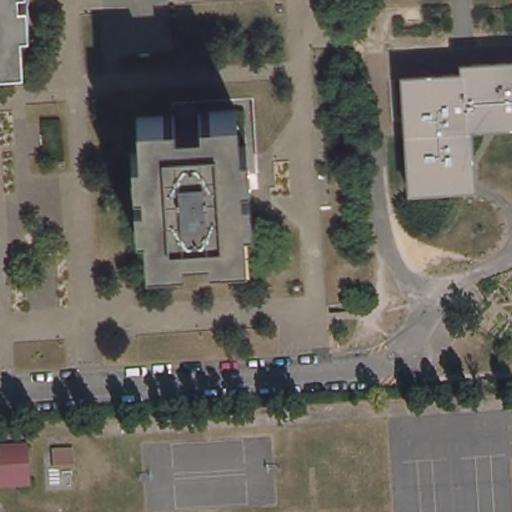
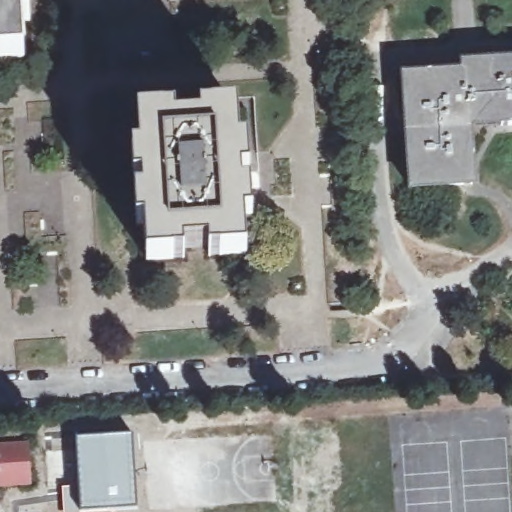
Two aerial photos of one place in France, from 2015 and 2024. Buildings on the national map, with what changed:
unchanged [(31,21),(30,21),(23,21),(25,57),(0,59),(0,0),(30,0),(31,21)]
unchanged [(404,78),(404,77),(466,73),(465,64),(509,62),(512,62),(512,124),(469,126),(473,183),(411,187),(411,186),(408,132),(407,113),(404,78)]
unchanged [(141,151),(138,115),(176,113),(176,121),(201,119),(200,111),(238,109),(240,144),(248,144),(251,174),(241,175),(243,188),(251,187),(253,218),(245,218),(247,254),(221,256),(221,255),(211,255),(211,256),(210,256),(209,248),(184,250),(185,258),(183,258),(183,257),(174,257),(174,258),(148,260),(146,225),(138,225),(136,195),(143,194),(143,181),(134,182),(133,151),(141,151)]
new [(75,437),(133,433),(138,511),(127,512),(61,512),(60,485),(77,484),(75,437)]
unchanged [(0,486),(0,446),(28,445),(30,484),(0,486)]

